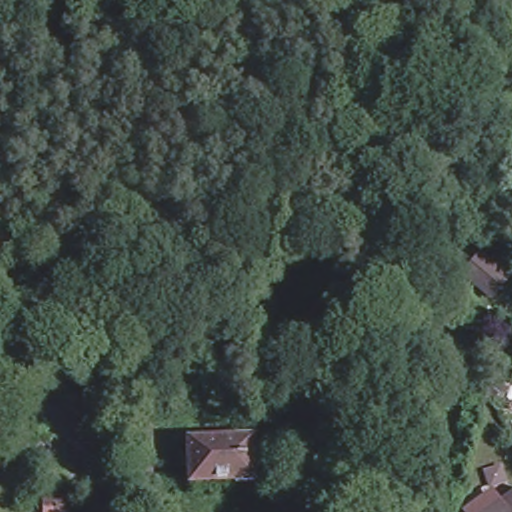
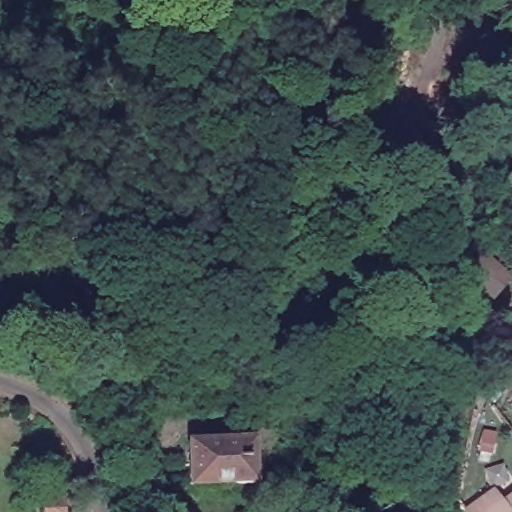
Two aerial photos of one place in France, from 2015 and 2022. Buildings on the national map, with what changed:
unchanged [(189,431),(250,430),(249,479),(188,481),(189,431)]
unchanged [(512,512),(488,512),(512,495),(512,512)]
unchanged [(69,500),(69,512),(43,512),(43,499),(69,500)]

